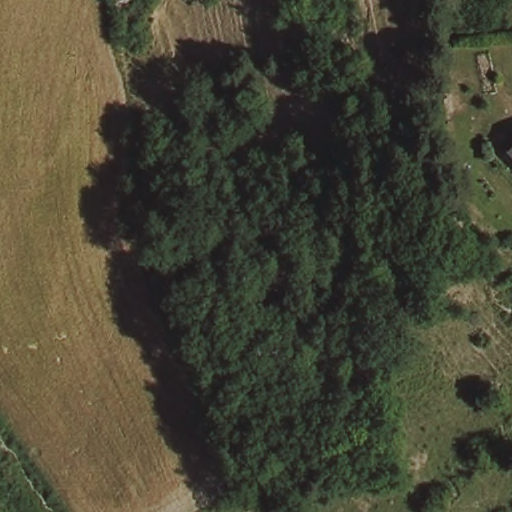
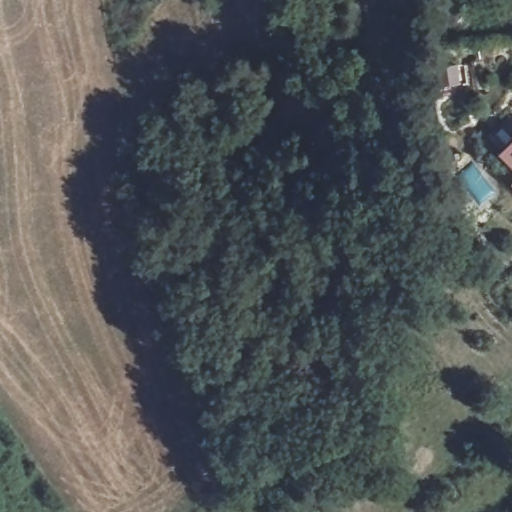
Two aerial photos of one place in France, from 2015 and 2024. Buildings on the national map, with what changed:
unchanged [(512,134),(512,173),(493,155),(512,134)]

